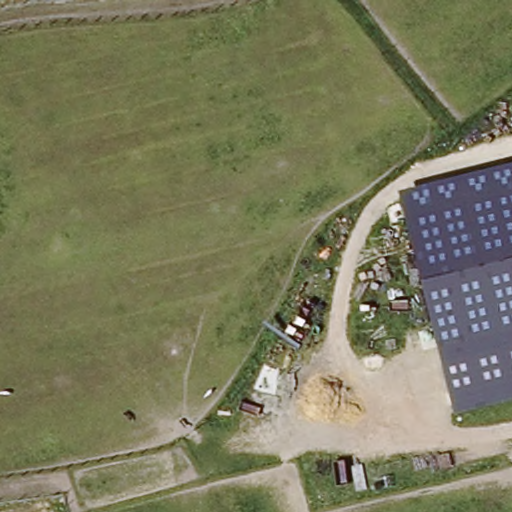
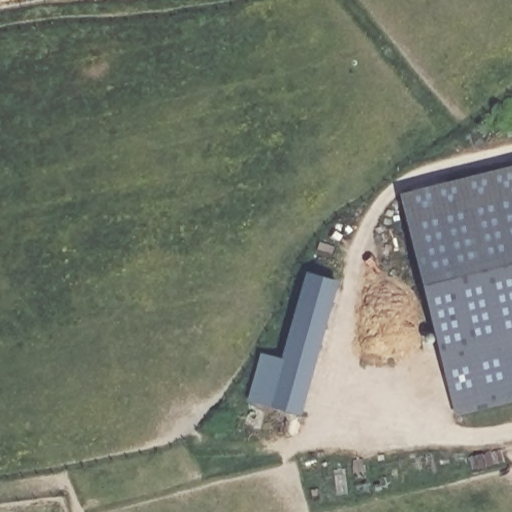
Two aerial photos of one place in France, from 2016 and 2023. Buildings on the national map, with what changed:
unchanged [(512,396),(454,411),(400,190),(512,163),(512,396)]
new [(300,413),(247,400),(259,351),(280,357),(304,270),(338,280),(300,413)]

